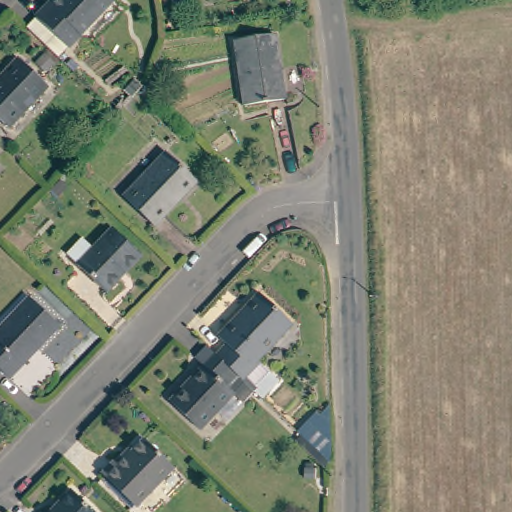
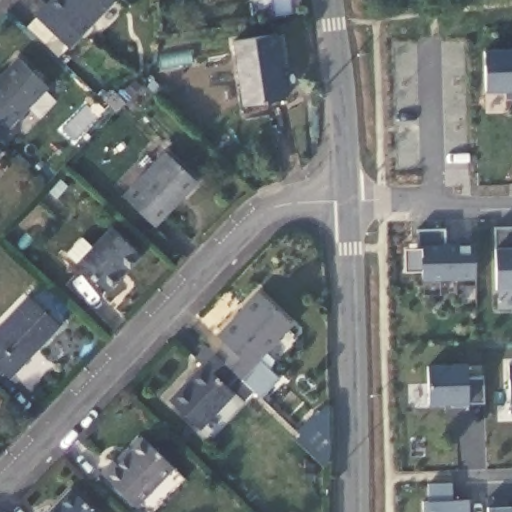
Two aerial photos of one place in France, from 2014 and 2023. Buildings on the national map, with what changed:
unchanged [(34,14),(48,0),(110,0),(67,45),(34,14)]
unchanged [(290,97),(252,104),(242,39),(282,32),(290,97)]
new [(512,49),(512,90),(484,90),(482,51),(512,49)]
unchanged [(50,84),(11,126),(0,115),(0,76),(19,55),(50,84)]
unchanged [(199,180),(157,224),(126,194),(168,150),(199,180)]
unchanged [(97,246),(115,226),(144,251),(110,288),(70,252),(85,235),(97,246)]
new [(496,229),(512,228),(512,291),(494,291),(495,249),(496,229)]
new [(444,230),(444,245),(474,244),(474,280),(420,281),(419,247),(417,247),(417,231),(444,230)]
unchanged [(242,377),(238,373),(237,373),(217,353),(227,342),(218,334),(259,291),(291,322),(255,359),(258,361),(269,370),(252,387),(242,377)]
unchanged [(3,368),(0,372),(0,327),(30,295),(60,325),(30,357),(11,377),(7,372),(3,368)]
unchanged [(217,353),(237,373),(226,384),(233,390),(199,427),(169,397),(203,362),(195,356),(208,344),(217,353)]
new [(512,364),(512,403),(509,403),(509,364),(512,364)]
new [(467,365),(467,380),(483,380),(483,405),(468,405),(428,405),(427,366),(467,365)]
unchanged [(116,457),(121,462),(147,435),(176,463),(139,502),(104,470),(116,457)]
new [(451,482),(451,501),(469,501),(469,512),(422,512),(421,502),(428,502),(427,483),(451,482)]
unchanged [(79,487),(105,512),(55,512),(79,487)]
new [(492,501),(512,501),(512,512),(492,512),(492,501)]

